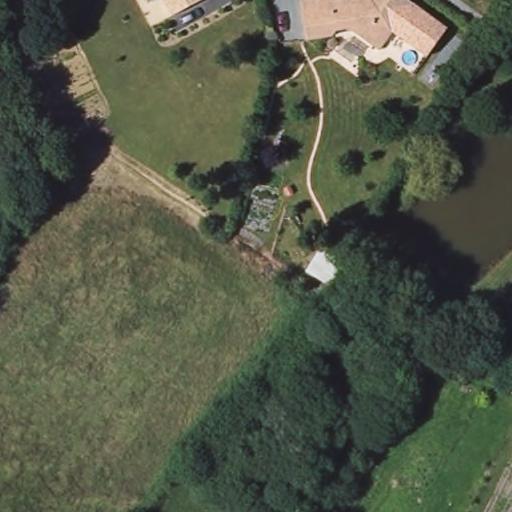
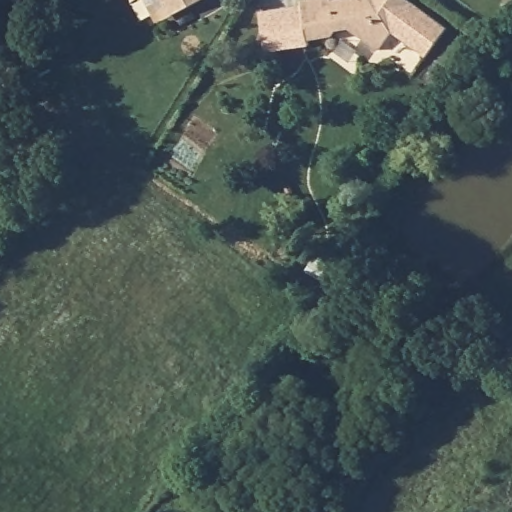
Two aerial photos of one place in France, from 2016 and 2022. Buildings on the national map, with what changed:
unchanged [(172,0),(202,0),(178,11),(172,0)]
unchanged [(427,56),(392,32),(380,49),(350,29),(337,30),(333,36),(307,41),(301,0),(332,0),(410,0),(448,27),(427,56)]
new [(308,45),(266,51),(261,12),(302,4),(307,41),(308,45)]

